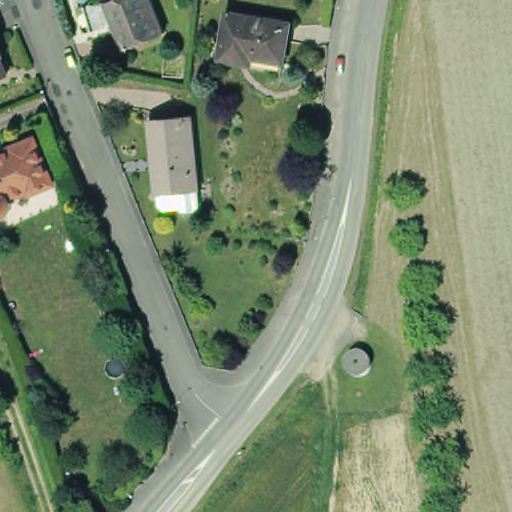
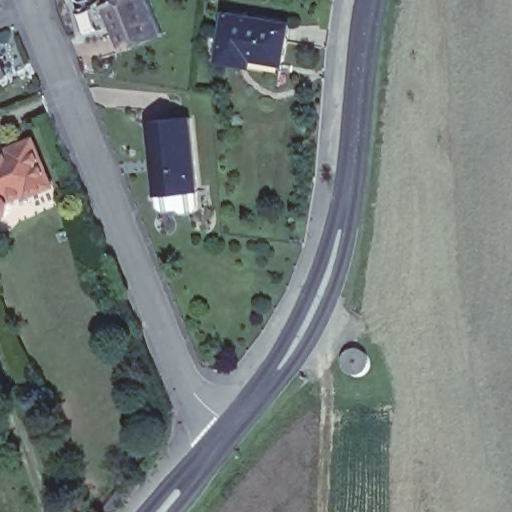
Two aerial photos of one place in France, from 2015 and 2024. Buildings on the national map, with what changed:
unchanged [(102,5),(114,0),(147,0),(160,32),(120,49),(102,5)]
unchanged [(298,20),(292,58),(251,52),(249,61),(229,57),(236,10),(298,20)]
unchanged [(1,72),(0,72),(0,70),(1,72)]
unchanged [(192,119),(199,192),(157,197),(150,123),(192,119)]
unchanged [(13,208),(10,212),(4,216),(0,216),(0,155),(14,149),(13,147),(35,137),(53,182),(33,191),(30,189),(11,197),(13,202),(13,208)]

